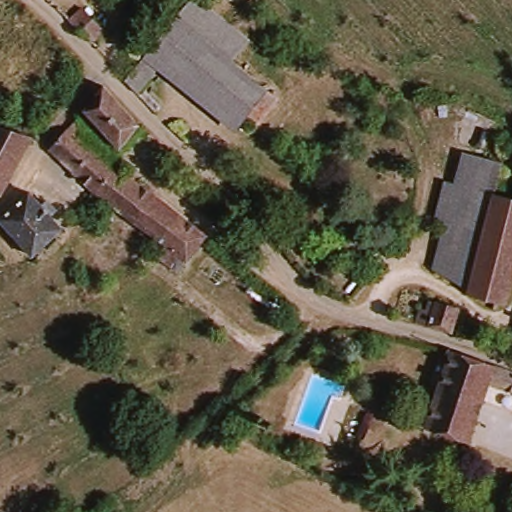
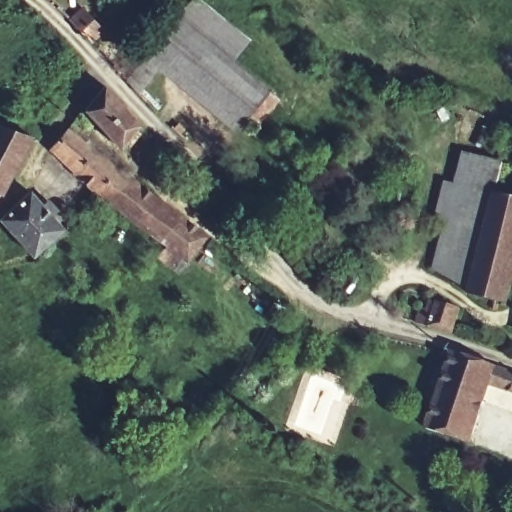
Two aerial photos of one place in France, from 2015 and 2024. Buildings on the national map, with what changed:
unchanged [(225,58),(174,17),(187,0),(192,0),(240,38),(225,58)]
unchanged [(82,37),(67,22),(79,10),(102,30),(89,44),(82,37)]
unchanged [(253,125),(242,116),(238,122),(161,62),(134,96),(122,82),(174,17),(225,58),(269,94),(274,97),(253,125)]
unchanged [(117,149),(82,111),(101,87),(137,130),(117,149)]
unchanged [(68,172),(45,154),(64,130),(75,118),(84,125),(75,137),(87,147),(68,172)]
unchanged [(28,137),(0,192),(0,125),(28,137)]
unchanged [(68,172),(87,147),(113,167),(93,192),(68,172)]
unchanged [(494,194),(467,292),(432,267),(445,224),(435,221),(445,182),(456,185),(464,154),(503,163),(495,194),(494,194)]
unchanged [(175,257),(166,267),(152,257),(162,246),(93,192),(113,167),(202,235),(202,236),(182,262),(175,257)]
unchanged [(29,194),(62,231),(34,256),(0,219),(29,194)]
unchanged [(467,292),(494,194),(495,194),(505,196),(512,198),(512,276),(505,301),(467,292)]
unchanged [(429,303),(430,300),(452,307),(443,333),(408,321),(414,306),(420,308),(423,302),(429,303)]
unchanged [(469,442),(427,428),(427,427),(427,424),(450,352),(512,371),(512,392),(489,383),(469,442)]

